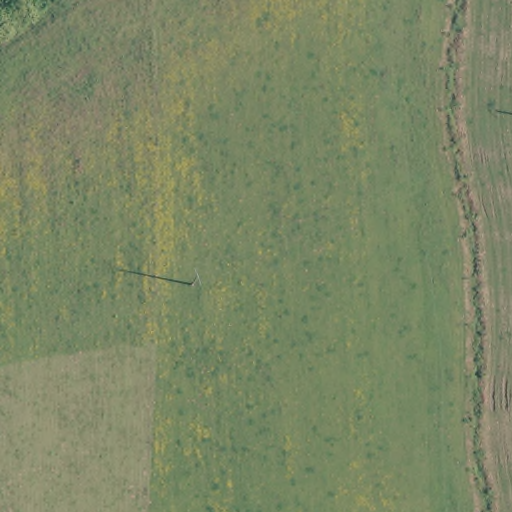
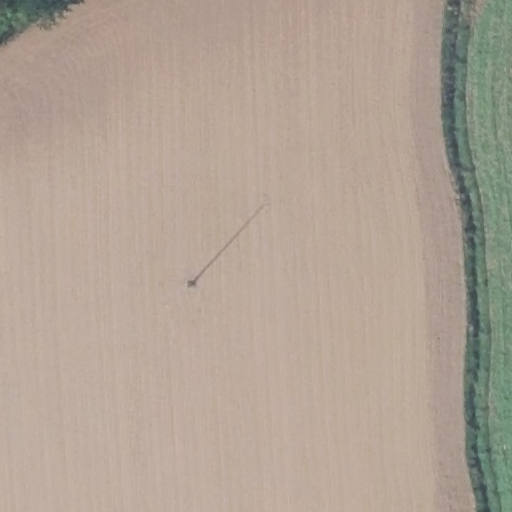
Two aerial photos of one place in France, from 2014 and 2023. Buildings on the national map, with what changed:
[]

